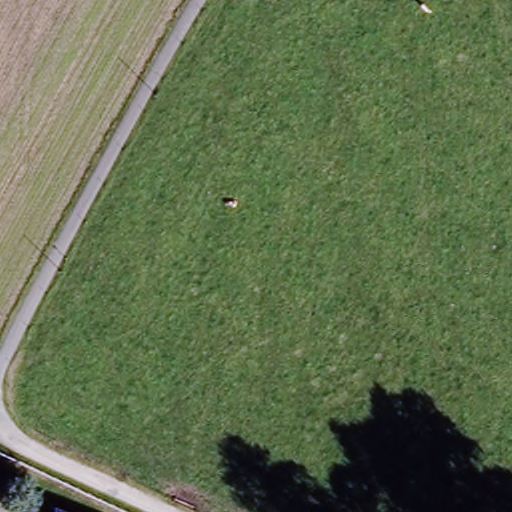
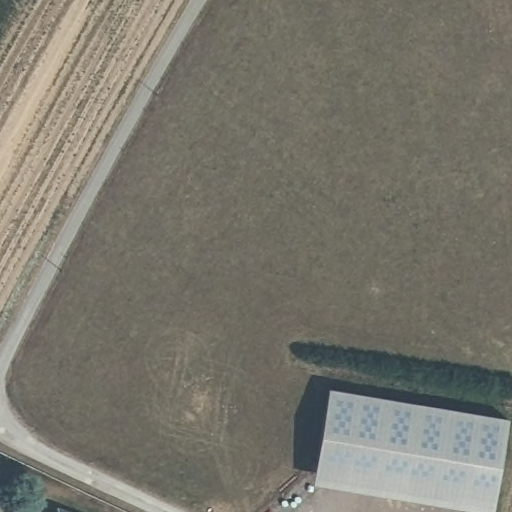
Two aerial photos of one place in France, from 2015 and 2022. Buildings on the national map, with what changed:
new [(313,463),(326,389),(506,419),(493,493),(313,463)]
new [(487,512),(311,483),(313,463),(493,493),(490,512),(487,512)]

